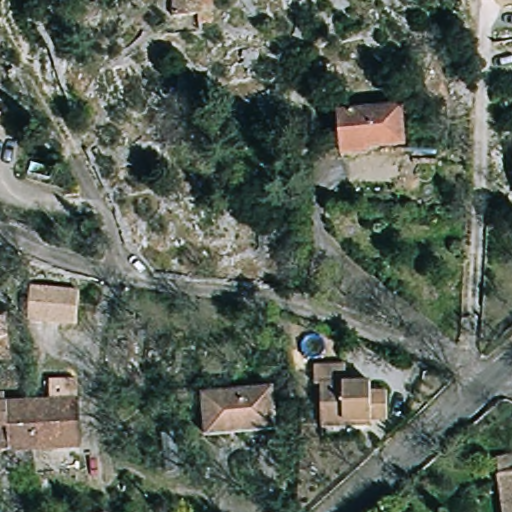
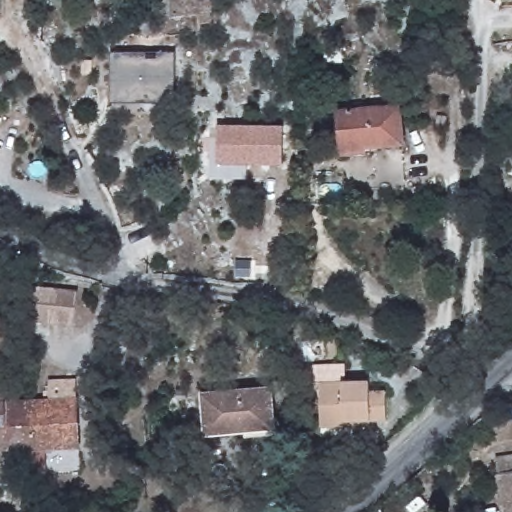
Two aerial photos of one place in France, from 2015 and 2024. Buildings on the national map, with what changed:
unchanged [(211,27),(200,27),(200,20),(173,17),(175,0),(212,0),(211,27)]
new [(113,52),(168,52),(167,96),(113,95),(113,52)]
unchanged [(400,109),(402,129),(402,146),(365,150),(365,154),(342,155),(339,114),(400,109)]
new [(284,126),(284,167),(218,164),(217,125),(284,126)]
unchanged [(427,128),(429,148),(413,149),(413,146),(411,129),(427,128)]
unchanged [(29,321),(33,285),(77,289),(75,324),(29,321)]
unchanged [(9,338),(12,359),(0,362),(0,317),(5,316),(9,338)]
unchanged [(363,422),(350,422),(350,430),(325,431),(323,383),(317,383),(316,364),(349,364),(350,382),(374,382),(374,389),(393,388),(393,421),(363,422)]
unchanged [(50,380),(78,380),(81,400),(50,401),(50,380)]
unchanged [(210,443),(202,404),(269,390),(277,429),(210,443)]
unchanged [(81,400),(83,445),(38,446),(36,401),(81,400)]
unchanged [(38,446),(0,448),(0,403),(36,401),(38,446)]
unchanged [(509,512),(502,464),(512,464),(512,512),(509,512)]
unchanged [(104,512),(99,512),(104,510),(104,512)]

